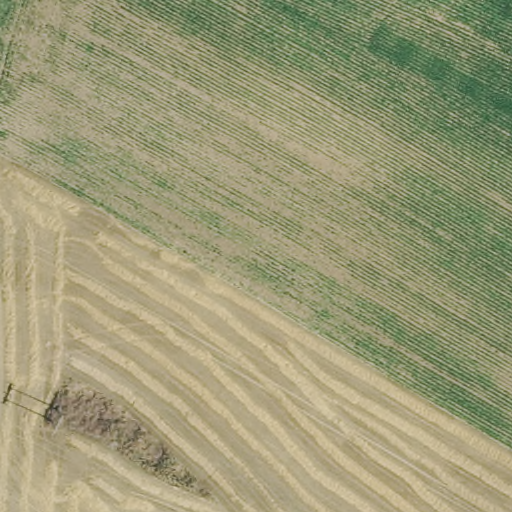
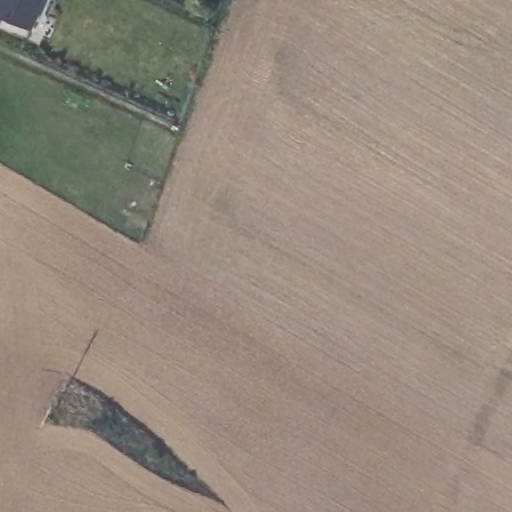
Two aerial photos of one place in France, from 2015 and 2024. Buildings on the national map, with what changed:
new [(33,30),(0,16),(0,0),(46,0),(33,30)]

